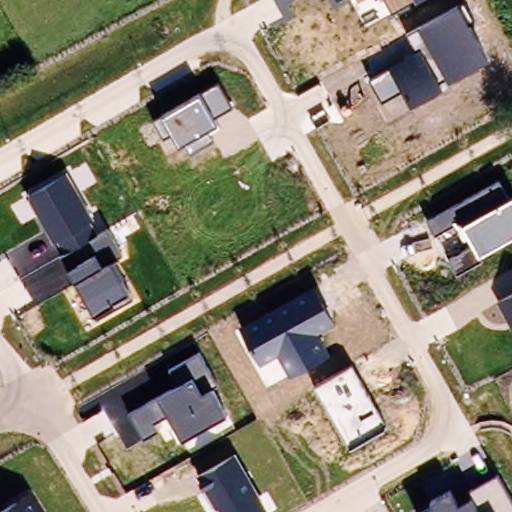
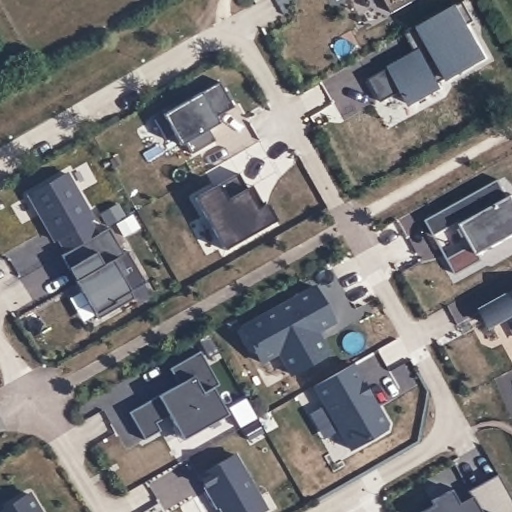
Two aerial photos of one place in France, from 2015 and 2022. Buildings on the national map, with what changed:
unchanged [(393,12),(386,0),(412,0),(393,12)]
unchanged [(370,79),(417,50),(407,35),(463,3),(473,21),(467,22),(488,60),(450,82),(446,76),(438,81),(443,89),(412,107),(402,90),(381,101),(370,79)]
unchanged [(232,107),(213,117),(219,125),(208,131),(214,141),(191,154),(184,142),(180,145),(173,133),(165,139),(154,120),(218,83),(232,107)]
unchanged [(67,173),(93,221),(90,222),(97,237),(109,231),(123,257),(117,259),(126,277),(122,279),(131,293),(95,314),(62,256),(65,253),(57,241),(53,242),(27,196),(67,173)]
new [(243,190),(248,187),(260,207),(263,205),(273,222),(264,227),(221,252),(191,200),(234,175),(243,190)]
unchanged [(472,244),(460,221),(436,235),(428,221),(502,180),(512,195),(512,237),(480,255),(483,260),(457,275),(447,258),(472,244)]
unchanged [(335,323),(317,333),(328,355),(291,376),(280,356),(261,365),(240,326),(311,290),(335,323)]
unchanged [(512,294),(512,324),(498,301),(512,294)]
unchanged [(218,385),(212,387),(227,414),(181,440),(166,414),(154,422),(159,430),(145,438),(130,411),(177,385),(169,370),(198,353),(218,385)]
unchanged [(387,422),(385,431),(352,449),(315,387),(353,365),(387,422)]
unchanged [(262,512),(222,512),(219,508),(217,510),(197,477),(235,454),(268,508),(262,512)]
unchanged [(512,512),(419,512),(432,505),(430,501),(450,492),(457,503),(472,496),(468,491),(497,477),(512,503),(512,512)]
unchanged [(0,512),(0,511),(26,495),(40,512),(0,512)]

